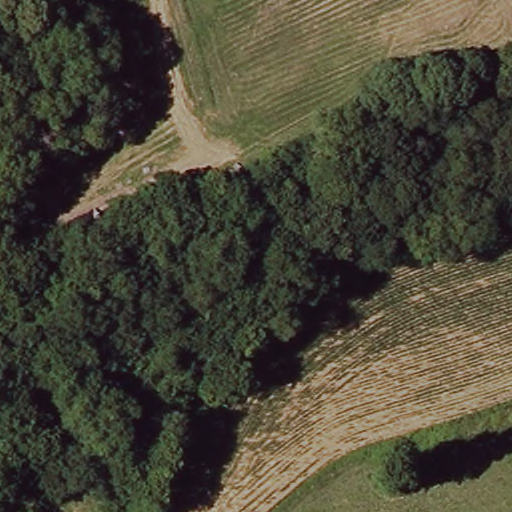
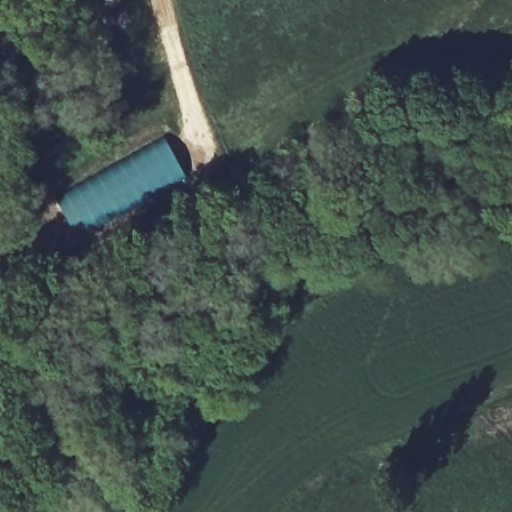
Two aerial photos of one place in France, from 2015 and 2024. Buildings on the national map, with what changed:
new [(57,200),(164,139),(182,171),(75,232),(57,200)]

